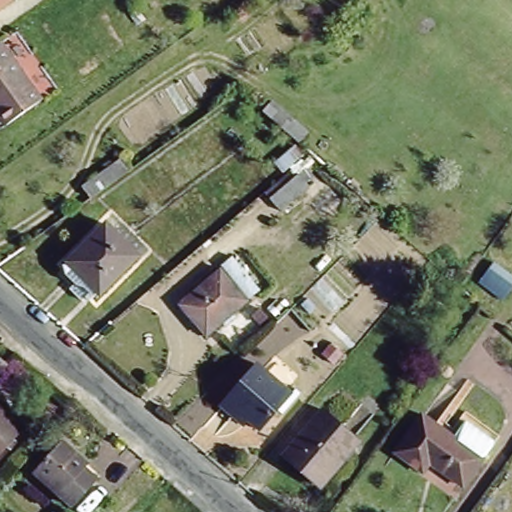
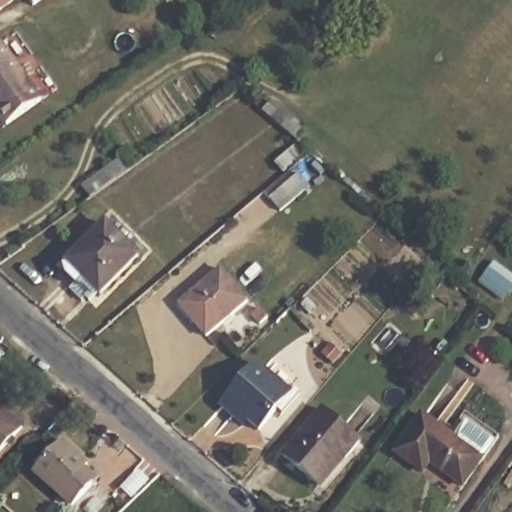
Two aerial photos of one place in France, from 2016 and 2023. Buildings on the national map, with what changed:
unchanged [(18,2),(0,15),(0,0),(16,0),(18,2)]
unchanged [(0,118),(0,42),(1,41),(42,99),(5,125),(0,118)]
unchanged [(304,161),(283,179),(274,168),(295,150),(304,161)]
unchanged [(97,182),(122,164),(131,175),(105,194),(97,182)]
unchanged [(299,180),(309,192),(281,216),(271,205),(299,180)]
unchanged [(137,256),(102,295),(67,262),(102,225),(137,256)]
unchanged [(248,298),(212,336),(183,309),(219,270),(248,298)]
unchanged [(258,362),(293,391),(298,395),(287,409),(281,405),(263,427),(252,417),(248,423),(224,403),(228,398),(258,362)]
unchanged [(0,449),(0,406),(6,412),(22,426),(0,449)]
unchanged [(347,460),(344,457),(320,487),(283,457),(321,410),(360,443),(351,455),(347,460)]
unchanged [(430,465),(423,474),(396,454),(423,417),(454,442),(435,468),(430,465)]
unchanged [(61,496),(35,471),(64,440),(88,463),(86,465),(88,468),(98,478),(93,483),(71,506),(61,496)]
unchanged [(454,442),(484,465),(465,490),(435,468),(454,442)]

